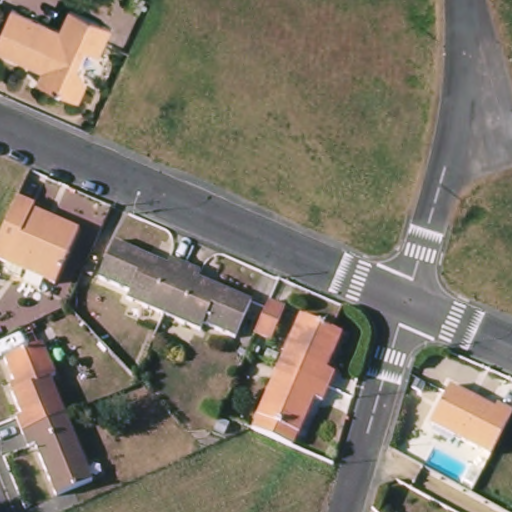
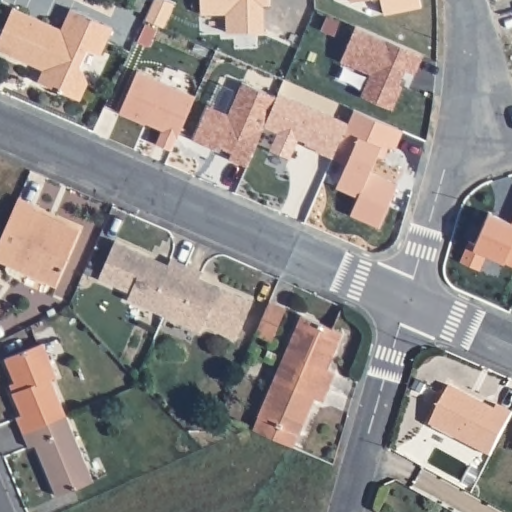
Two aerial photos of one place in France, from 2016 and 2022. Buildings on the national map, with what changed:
new [(262,5),(263,32),(226,33),(225,14),(200,15),(200,0),(269,0),(269,5),(262,5)]
new [(350,0),(355,0),(350,1),(350,0)]
new [(383,14),(381,0),(420,0),(421,6),(383,14)]
unchanged [(99,59),(87,54),(78,72),(82,75),(87,87),(79,105),(37,86),(42,75),(45,67),(32,62),(29,69),(0,55),(0,39),(12,12),(60,35),(70,14),(112,32),(99,59)]
new [(356,29),(423,57),(415,76),(404,72),(397,86),(401,87),(390,111),(359,97),(368,75),(341,63),(356,29)]
new [(171,151),(155,144),(162,130),(145,122),(144,124),(118,113),(136,72),(194,97),(171,151)]
new [(207,106),(227,115),(241,82),(276,97),(263,127),(245,167),(228,159),(231,153),(212,145),(211,148),(192,140),(207,106)]
new [(276,97),(277,93),(346,123),(331,158),(315,151),(316,150),(296,141),(289,159),(269,151),(277,132),(263,127),(276,97)]
unchanged [(38,206),(36,211),(82,232),(57,285),(26,271),(23,277),(12,272),(9,267),(11,263),(0,258),(0,247),(22,199),(24,200),(38,206)]
new [(475,245),(488,214),(511,224),(512,223),(512,266),(486,255),(479,271),(460,262),(469,242),(475,245)]
unchanged [(151,254),(149,261),(167,268),(171,258),(203,272),(199,282),(219,291),(221,285),(254,299),(238,338),(203,323),(200,331),(127,298),(130,292),(99,278),(115,238),(151,254)]
unchanged [(284,308),(271,340),(256,332),(269,302),(284,308)]
unchanged [(300,322),(342,338),(333,362),(328,361),(323,373),(334,377),(329,391),(279,371),(300,322)]
unchanged [(53,383),(94,487),(58,502),(37,452),(31,455),(18,423),(24,421),(15,397),(12,390),(17,387),(8,362),(45,347),(59,381),(53,383)]
unchanged [(279,371),(329,391),(323,405),(311,401),(306,413),(310,415),(294,451),(252,432),(279,371)]
unchanged [(498,407),(512,414),(512,416),(490,458),(430,427),(450,388),(495,411),(498,407)]

